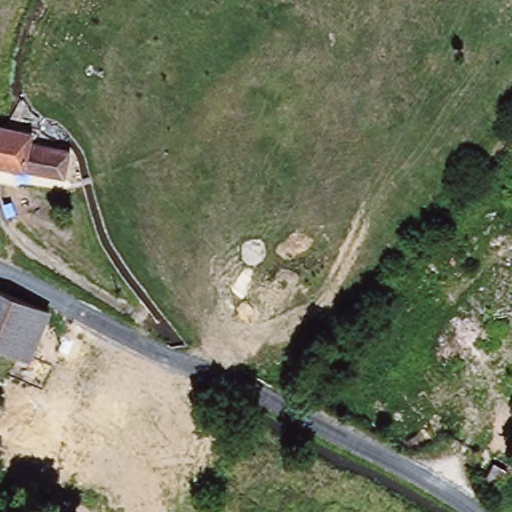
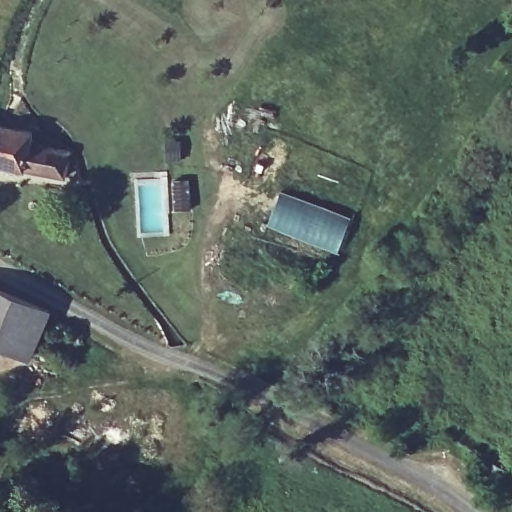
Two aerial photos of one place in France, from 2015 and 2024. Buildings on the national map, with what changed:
unchanged [(0,128),(7,129),(29,134),(28,146),(68,155),(67,171),(73,172),(78,182),(0,166),(0,128)]
new [(343,232),(347,234),(337,251),(286,232),(289,225),(272,219),(289,194),(350,217),(347,225),(343,232)]
unchanged [(0,342),(0,289),(49,310),(30,355),(0,342)]

